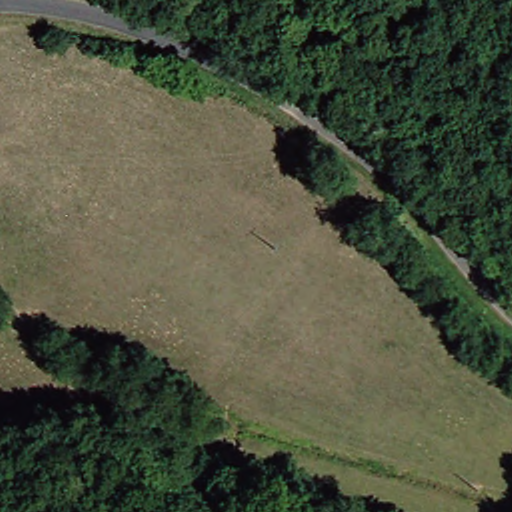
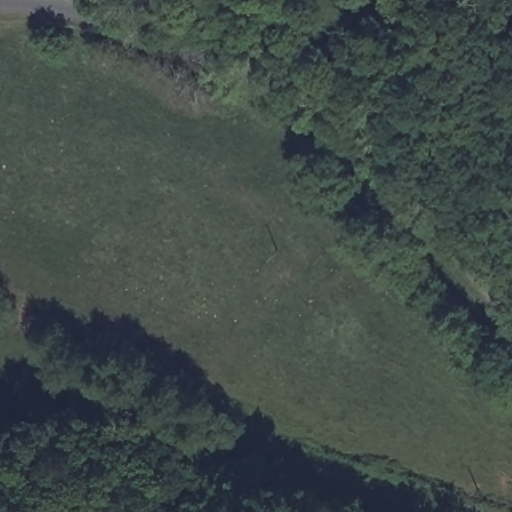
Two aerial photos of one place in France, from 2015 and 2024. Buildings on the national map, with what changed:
unchanged [(390,225),(403,245),(391,254),(376,235),(385,229),(390,225)]

